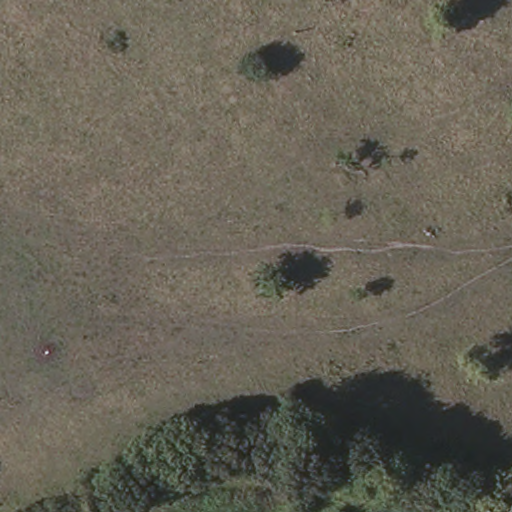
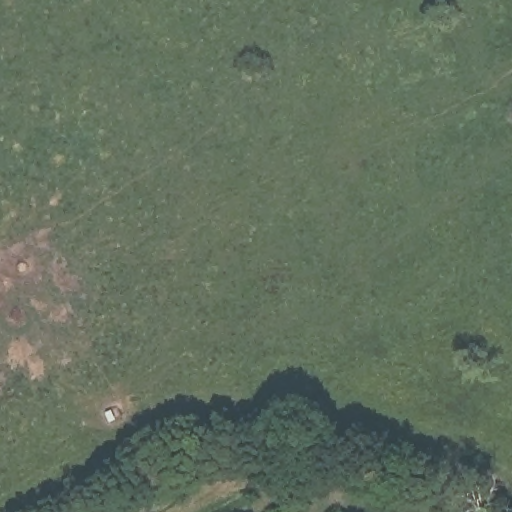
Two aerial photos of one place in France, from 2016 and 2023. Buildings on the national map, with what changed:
[]

